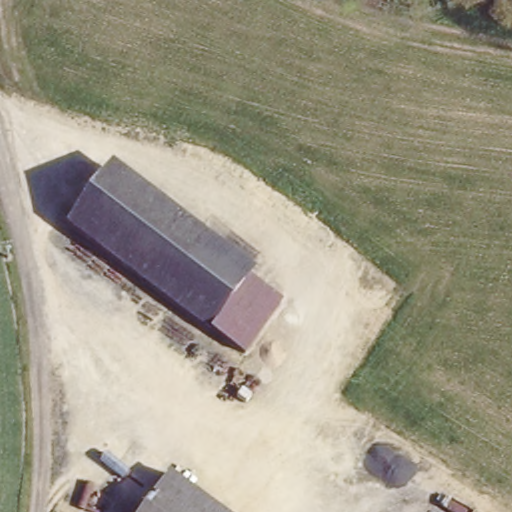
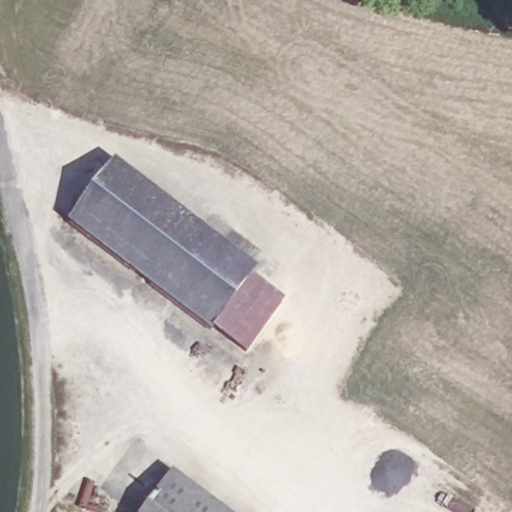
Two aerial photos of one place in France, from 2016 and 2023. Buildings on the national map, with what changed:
unchanged [(75,223),(124,164),(264,274),(257,283),(217,332),(75,223)]
unchanged [(217,332),(257,283),(282,302),(242,352),(217,332)]
unchanged [(220,512),(147,512),(172,477),(220,512)]

